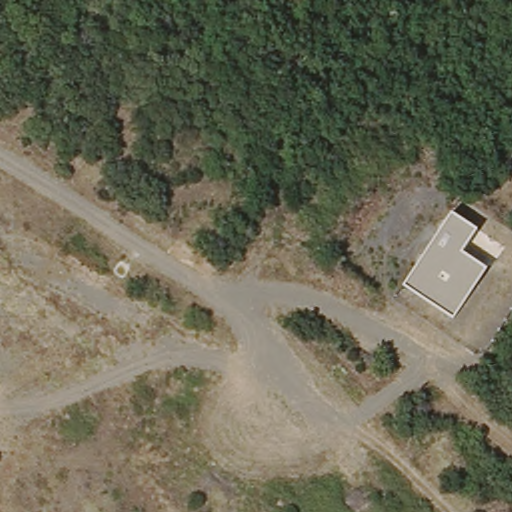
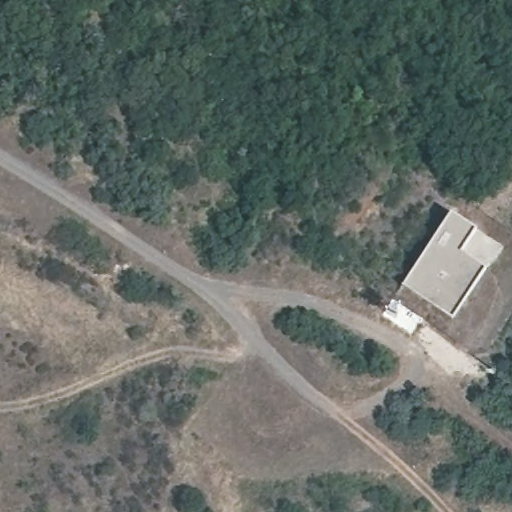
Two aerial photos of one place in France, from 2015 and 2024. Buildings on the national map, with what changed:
unchanged [(476,231),(461,253),(486,269),(453,318),(404,284),(452,214),(476,231)]

